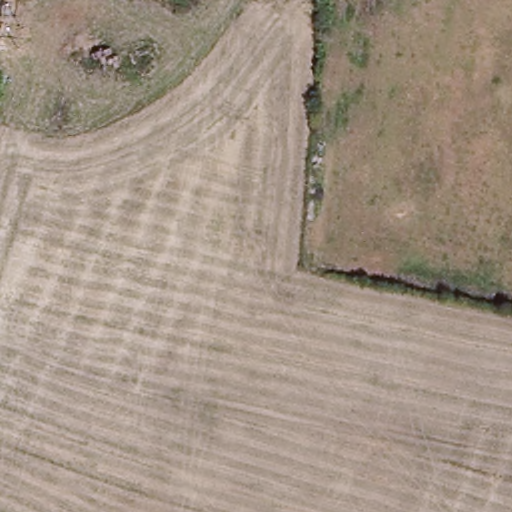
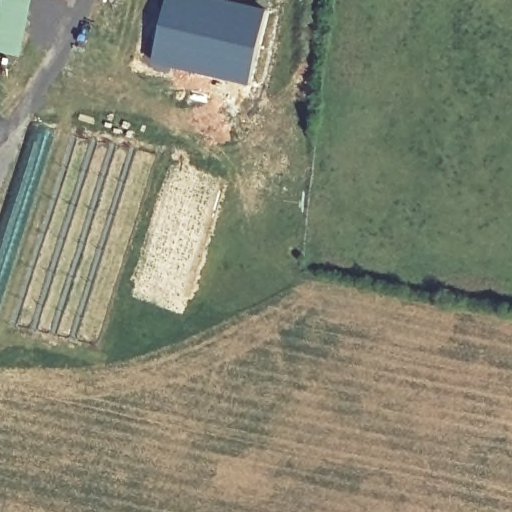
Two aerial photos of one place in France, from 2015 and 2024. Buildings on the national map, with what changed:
new [(0,47),(0,4),(1,0),(31,0),(21,51),(0,47)]
new [(154,59),(168,0),(236,0),(268,8),(251,84),(154,59)]

